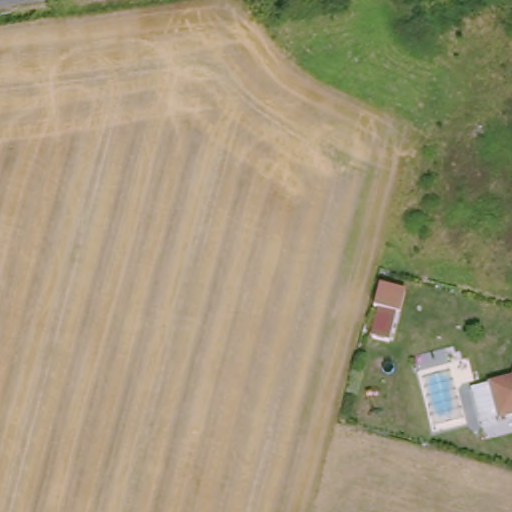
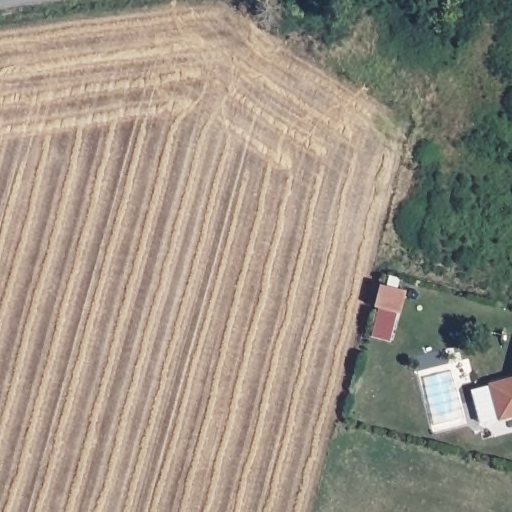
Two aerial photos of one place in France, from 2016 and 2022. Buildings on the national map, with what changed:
unchanged [(403,289),(397,312),(373,305),(379,282),(403,289)]
unchanged [(502,417),(493,382),(512,377),(512,414),(502,417)]

